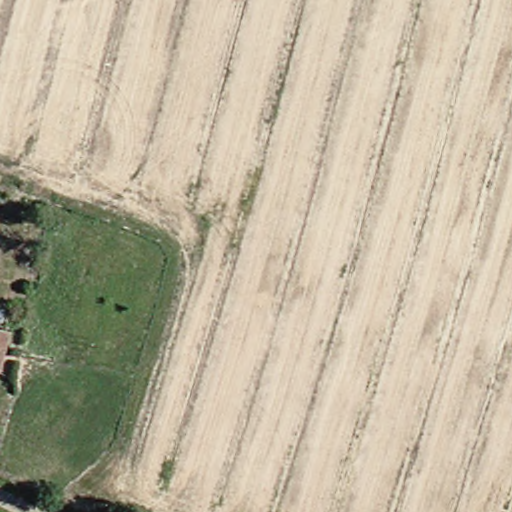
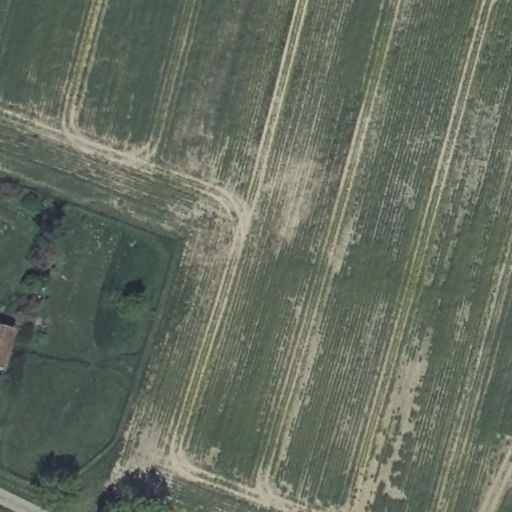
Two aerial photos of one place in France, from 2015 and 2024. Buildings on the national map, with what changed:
unchanged [(2,185),(0,191),(0,184),(2,185)]
unchanged [(14,338),(7,356),(0,353),(0,333),(14,338)]

